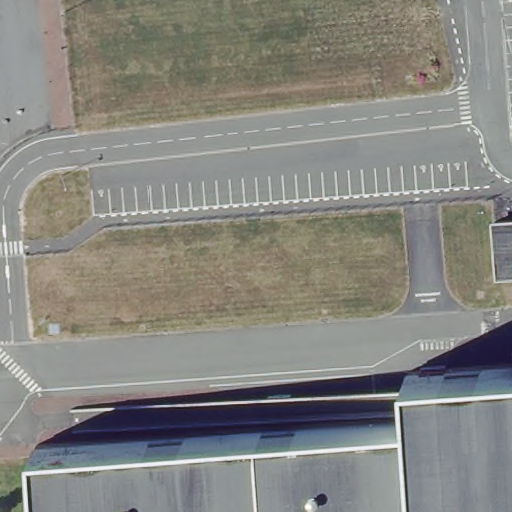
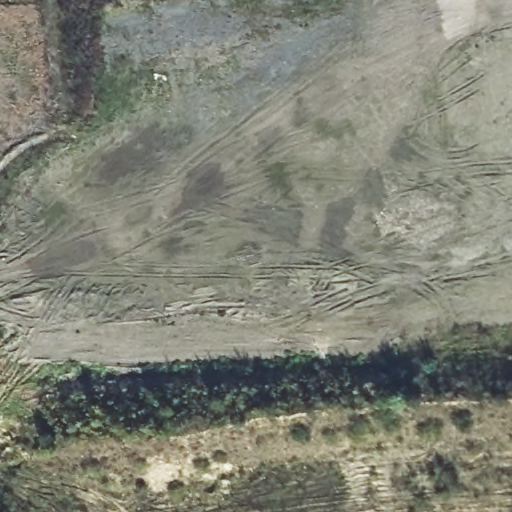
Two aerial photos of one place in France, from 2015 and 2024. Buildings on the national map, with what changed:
demolished [(512,239),(512,265),(503,265),(502,240),(512,239)]
demolished [(183,437),(411,421),(409,371),(512,363),(512,512),(40,512),(35,447),(183,437)]

